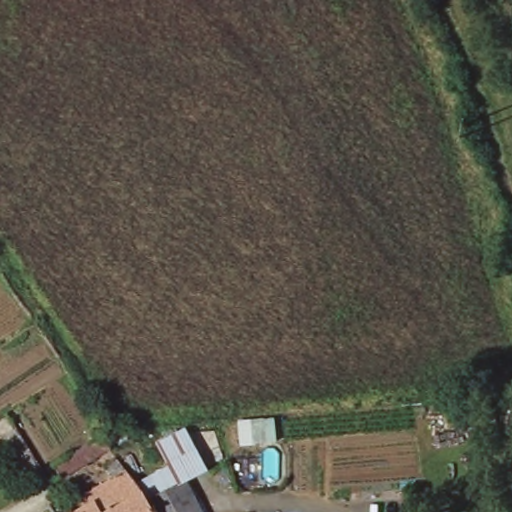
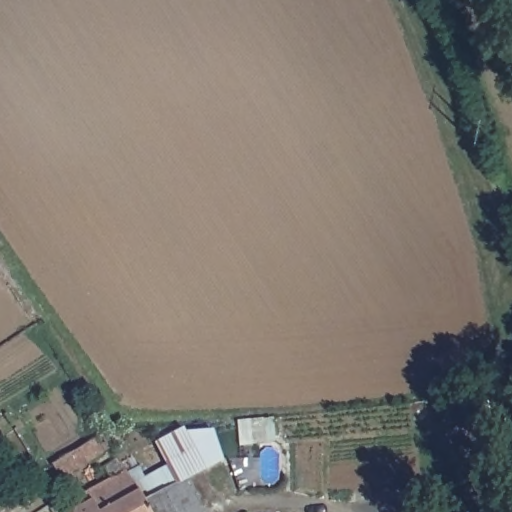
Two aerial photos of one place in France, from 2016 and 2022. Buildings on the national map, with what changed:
unchanged [(134,453),(190,431),(208,472),(189,480),(153,493),(134,453)]
unchanged [(110,449),(58,481),(50,466),(100,437),(110,449)]
unchanged [(123,456),(134,473),(147,495),(155,512),(69,512),(65,504),(90,491),(114,477),(110,463),(123,456)]
unchanged [(189,480),(205,512),(155,512),(147,495),(153,493),(189,480)]

